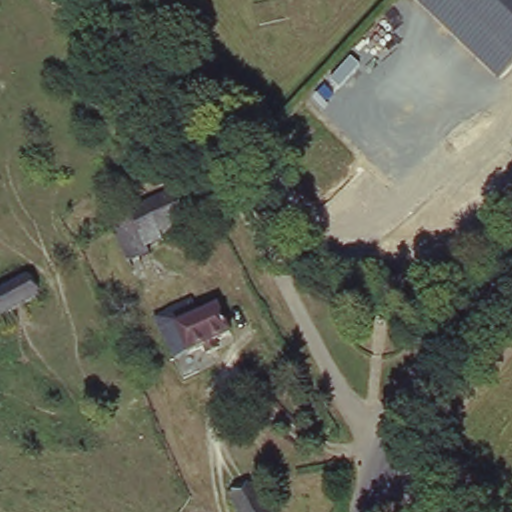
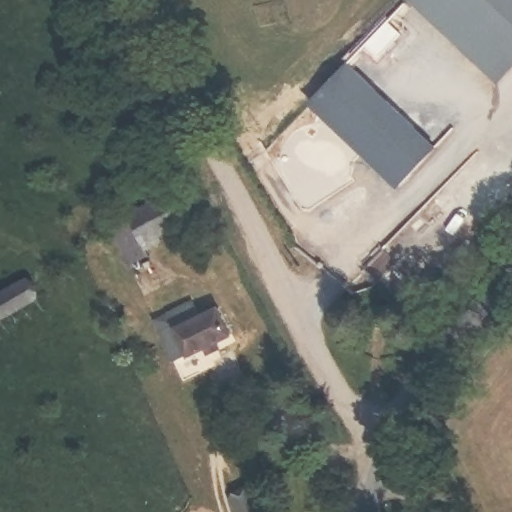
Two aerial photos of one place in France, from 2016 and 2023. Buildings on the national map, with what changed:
unchanged [(498,79),(414,0),(512,0),(512,64),(498,79)]
new [(351,57),(441,141),(401,186),(310,98),(351,57)]
unchanged [(191,213),(189,215),(163,229),(168,236),(151,245),(155,252),(135,264),(110,225),(173,186),(191,213)]
unchanged [(39,297),(0,319),(0,290),(26,275),(39,297)]
unchanged [(234,328),(215,338),(218,346),(206,353),(202,346),(189,353),(186,349),(170,358),(150,316),(155,314),(190,295),(197,312),(219,300),(234,328)]
unchanged [(238,512),(230,496),(254,484),(269,512),(238,512)]

